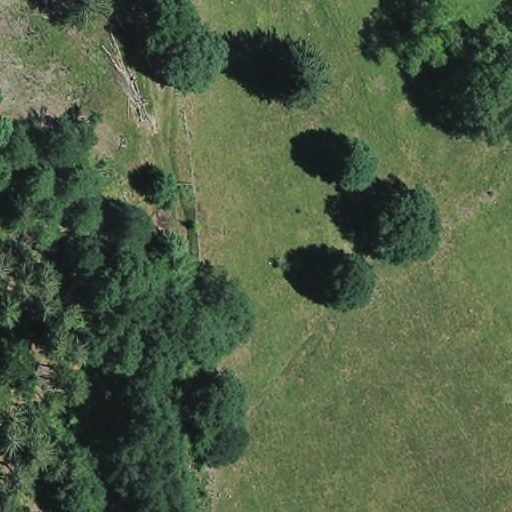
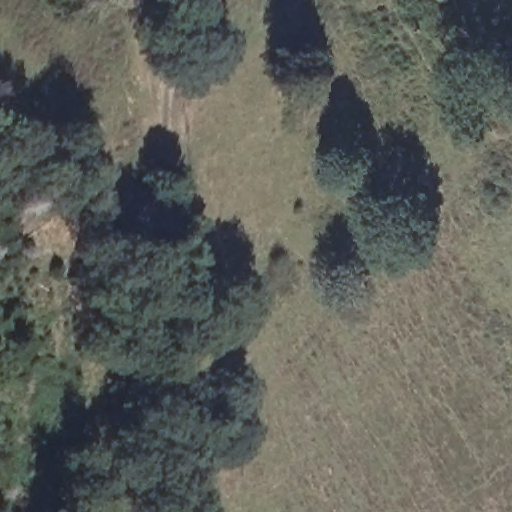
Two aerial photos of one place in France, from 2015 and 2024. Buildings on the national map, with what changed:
unchanged [(509,75),(512,79),(512,109),(508,111),(488,85),(509,75)]

